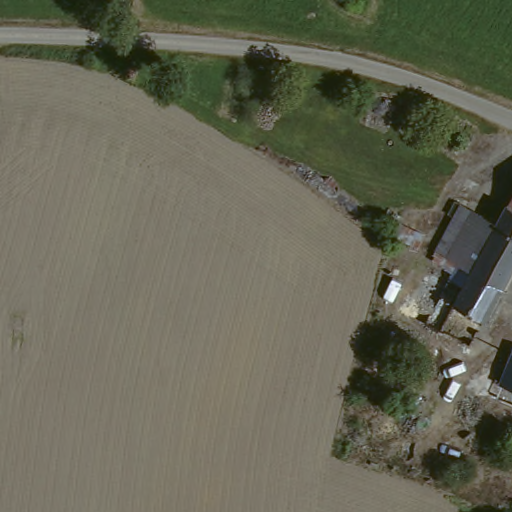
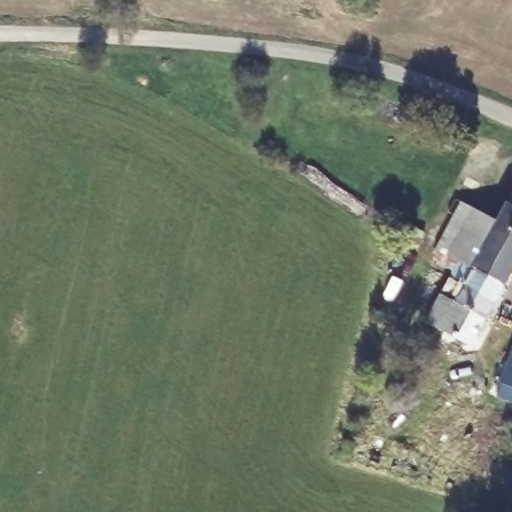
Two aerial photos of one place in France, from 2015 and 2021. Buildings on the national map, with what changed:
unchanged [(460,265),(466,254),(444,241),(467,196),(502,214),(512,199),(512,278),(510,280),(481,263),(475,273),(460,265)]
unchanged [(395,219),(425,234),(418,249),(388,234),(395,219)]
unchanged [(476,338),(433,313),(460,265),(475,273),(481,263),(510,280),(476,338)]
unchanged [(510,380),(500,376),(509,351),(512,352),(512,401),(505,398),(510,380)]

